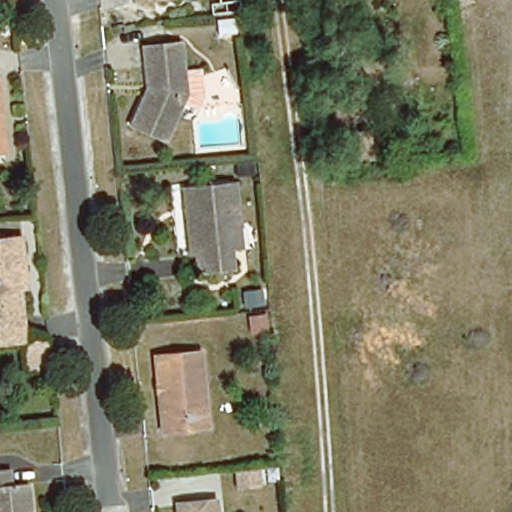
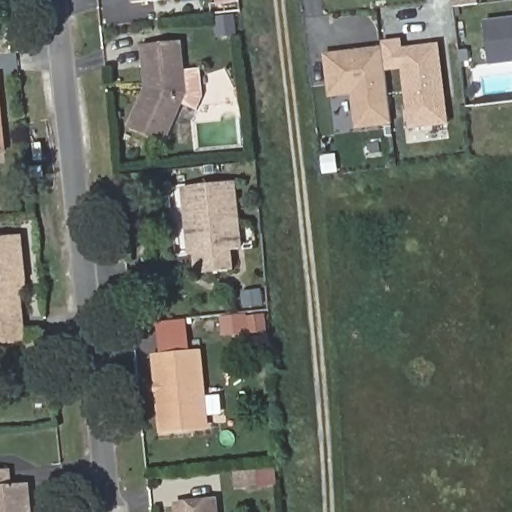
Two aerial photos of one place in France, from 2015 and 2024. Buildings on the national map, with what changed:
new [(218,5),(218,0),(239,0),(240,1),(218,5)]
new [(488,64),(483,21),(512,18),(512,61),(488,64)]
new [(448,124),(410,128),(403,67),(385,69),(382,42),(401,40),(402,49),(439,45),(448,124)]
unchanged [(141,95),(145,86),(140,47),(180,43),(184,72),(198,71),(201,97),(195,111),(181,105),(165,142),(128,126),(141,95)]
new [(392,125),(357,129),(353,96),(331,98),(326,54),(383,47),(392,125)]
demolished [(335,165),(335,131),(317,133),(313,105),(346,102),(347,129),(371,127),(377,160),(335,165)]
unchanged [(0,110),(4,149),(0,149),(0,110)]
unchanged [(233,267),(211,270),(210,249),(195,250),(189,185),(237,181),(241,230),(242,245),(231,246),(233,267)]
unchanged [(20,274),(20,283),(15,283),(19,335),(0,337),(0,235),(15,233),(20,274)]
unchanged [(19,340),(44,338),(45,360),(21,362),(19,340)]
unchanged [(204,425),(160,428),(154,356),(196,352),(204,425)]
unchanged [(13,482),(30,480),(33,512),(0,512),(0,466),(11,465),(13,482)]
unchanged [(258,485),(238,487),(237,472),(257,470),(258,485)]
unchanged [(177,504),(214,500),(215,512),(178,512),(177,504)]

